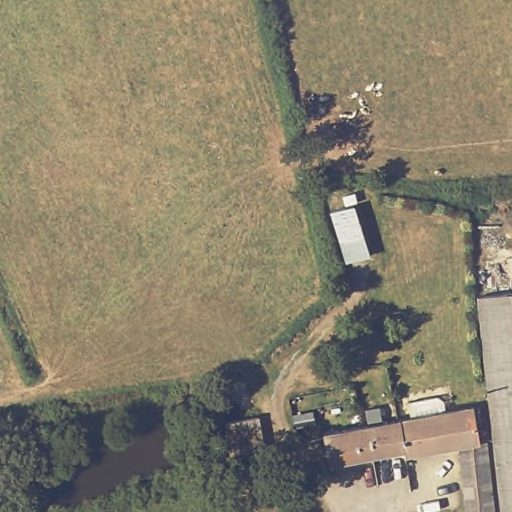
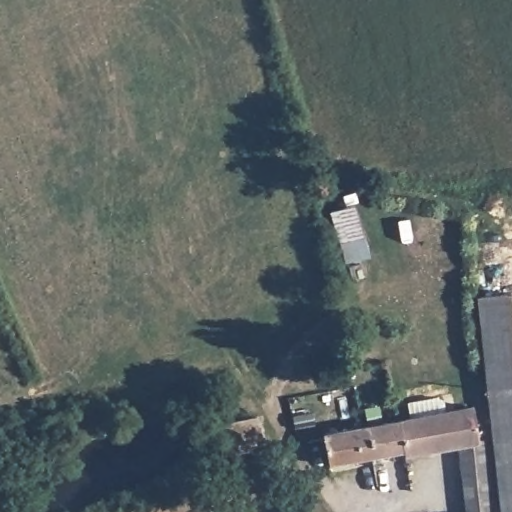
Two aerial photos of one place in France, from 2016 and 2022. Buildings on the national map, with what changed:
unchanged [(343,271),(323,200),(347,194),(367,264),(343,271)]
unchanged [(478,296),(512,293),(512,512),(501,512),(478,296)]
unchanged [(458,445),(405,455),(404,451),(397,420),(411,417),(407,402),(437,397),(442,401),(445,411),(473,406),(479,440),(487,438),(494,512),(466,512),(458,445)]
unchanged [(241,449),(236,417),(267,412),(272,443),(241,449)]
unchanged [(310,424),(294,427),(292,417),(307,413),(310,424)]
unchanged [(367,425),(397,420),(404,451),(372,457),(329,464),(323,433),(361,426),(367,425)]

